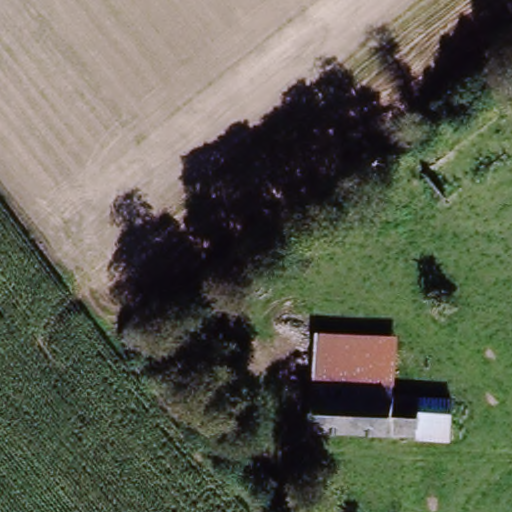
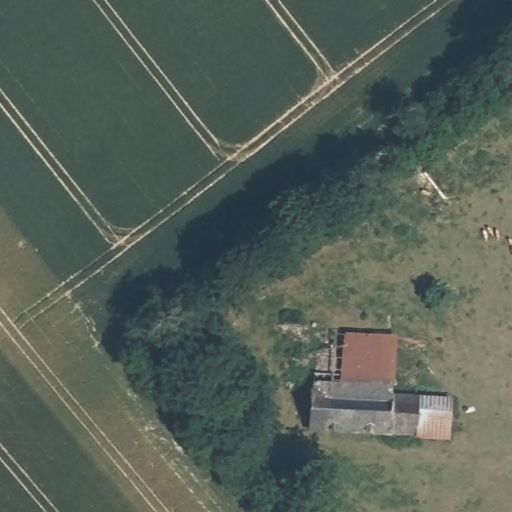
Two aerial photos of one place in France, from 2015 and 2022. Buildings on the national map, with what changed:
unchanged [(395,335),(394,398),(450,400),(448,442),(302,435),(314,331),(395,335)]

